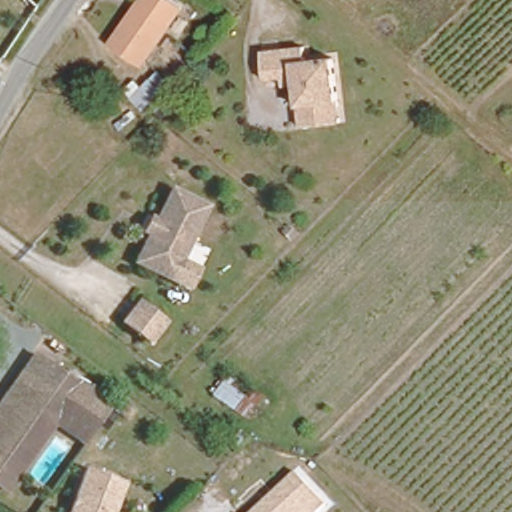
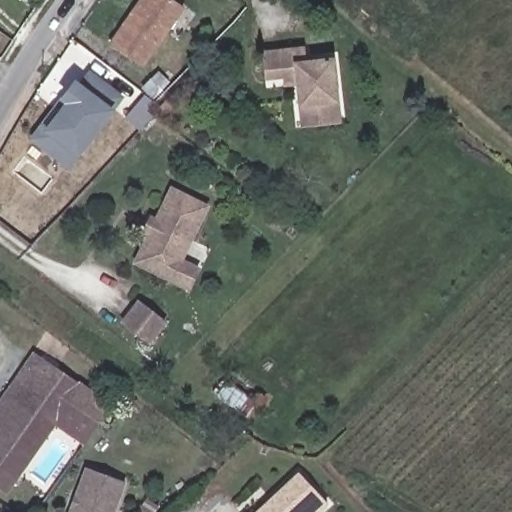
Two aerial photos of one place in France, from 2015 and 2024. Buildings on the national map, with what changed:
unchanged [(139,0),(174,0),(184,7),(142,66),(109,42),(139,0)]
unchanged [(286,81),(275,82),(274,74),(254,76),(252,49),(295,45),(296,59),(322,56),(327,97),(330,122),(299,125),(291,126),(286,81)]
new [(59,98),(75,79),(80,83),(89,70),(123,96),(115,110),(79,157),(67,169),(28,139),(59,98)]
unchanged [(203,203),(166,276),(131,259),(146,230),(141,227),(148,213),(154,215),(169,185),(203,203)]
unchanged [(161,312),(147,334),(126,318),(124,317),(139,296),(144,300),(161,312)]
unchanged [(0,412),(0,393),(29,351),(38,357),(0,412)]
unchanged [(96,422),(64,398),(47,421),(1,487),(0,486),(0,412),(38,357),(71,380),(108,405),(96,422)]
unchanged [(80,444),(47,421),(64,398),(96,422),(80,444)]
unchanged [(85,466),(123,480),(112,512),(69,512),(85,466)]
unchanged [(301,473),(330,504),(321,512),(259,512),(301,473)]

